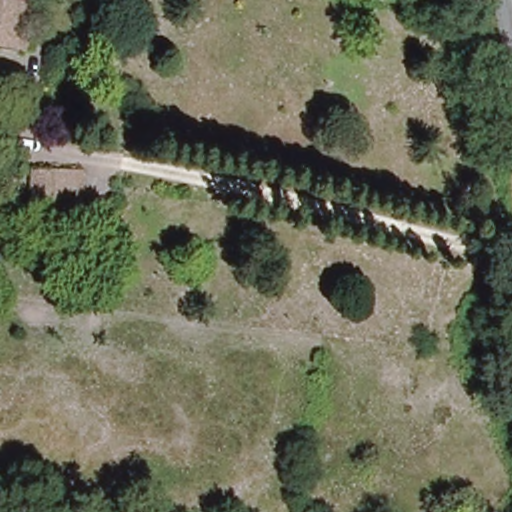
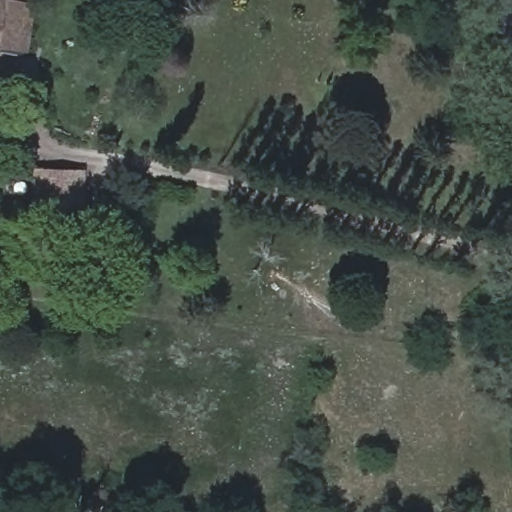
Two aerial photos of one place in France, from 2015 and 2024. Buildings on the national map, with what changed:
unchanged [(27,50),(0,45),(0,0),(34,0),(27,50)]
unchanged [(79,214),(63,212),(64,202),(49,199),(48,204),(29,200),(33,180),(35,168),(61,173),(60,185),(84,189),(79,214)]

